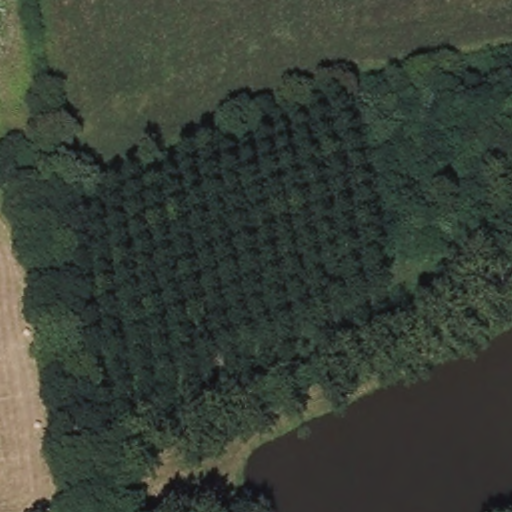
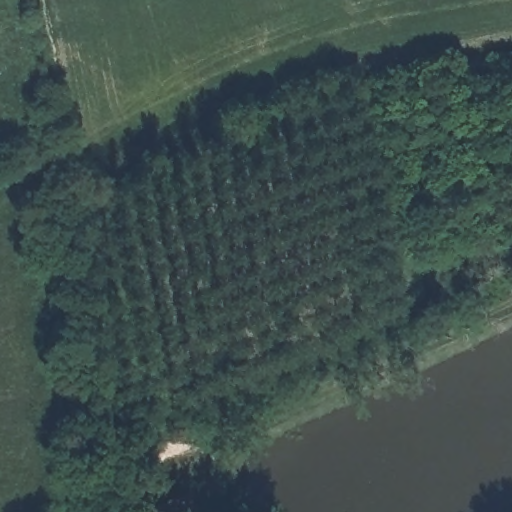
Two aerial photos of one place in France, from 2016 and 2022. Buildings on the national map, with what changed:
unchanged [(169,499),(189,490),(198,512),(158,512),(155,505),(169,499)]

